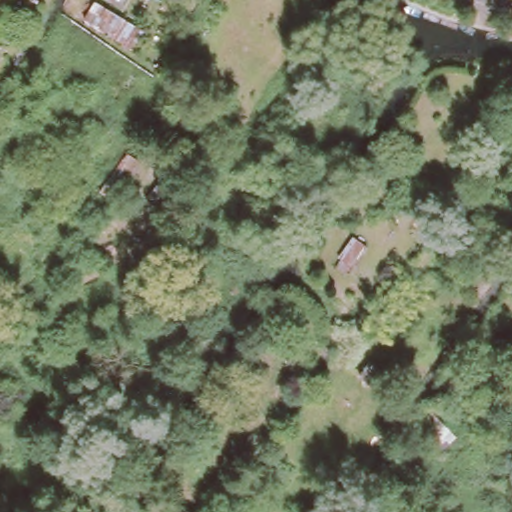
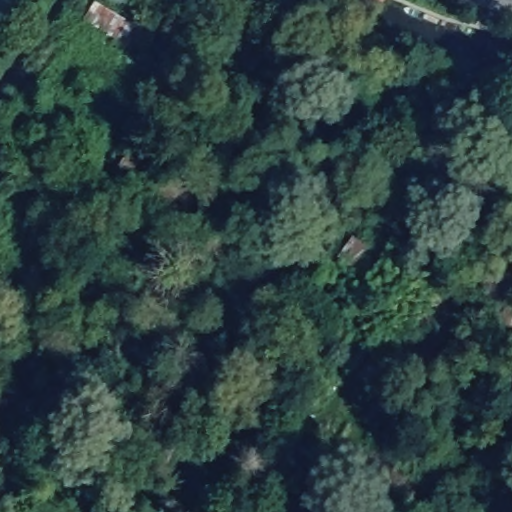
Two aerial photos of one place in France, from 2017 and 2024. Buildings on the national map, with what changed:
unchanged [(125,34),(114,26),(122,14),(132,21),(125,34)]
unchanged [(178,190),(165,210),(149,198),(160,178),(178,190)]
unchanged [(369,246),(353,269),(337,259),(352,236),(369,246)]
unchanged [(192,286),(201,294),(194,303),(185,296),(192,286)]
unchanged [(370,362),(383,371),(373,384),(360,376),(370,362)]
unchanged [(432,439),(443,428),(454,439),(444,451),(432,439)]

